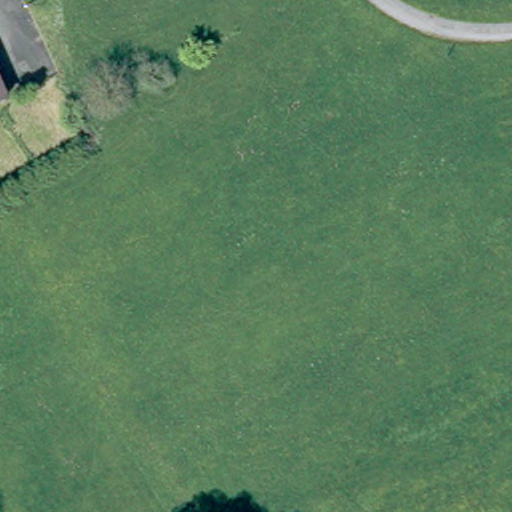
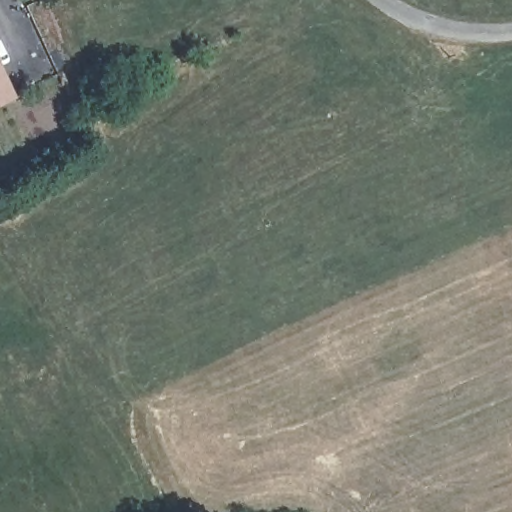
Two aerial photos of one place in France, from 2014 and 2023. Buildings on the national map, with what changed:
unchanged [(0,84),(7,99),(0,102),(0,84)]

